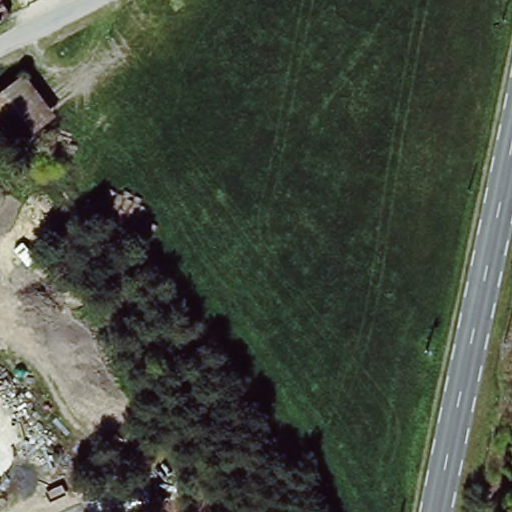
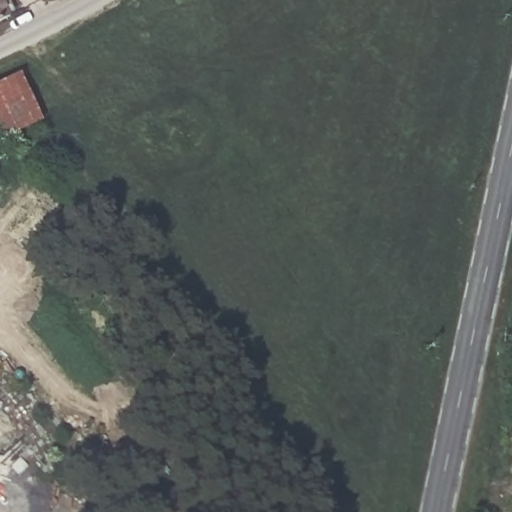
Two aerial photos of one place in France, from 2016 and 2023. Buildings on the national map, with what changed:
unchanged [(0,18),(0,4),(5,15),(0,18)]
unchanged [(10,152),(0,139),(0,93),(20,80),(51,122),(10,152)]

